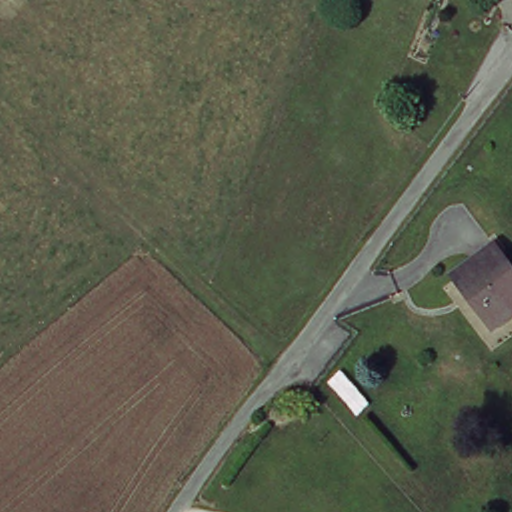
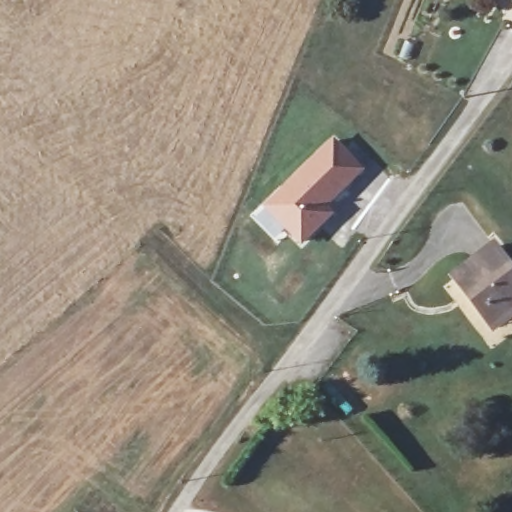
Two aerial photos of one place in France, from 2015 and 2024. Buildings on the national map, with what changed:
new [(332,134),(366,169),(330,204),(336,212),(300,247),(260,205),(332,134)]
unchanged [(485,309),(458,274),(497,244),(512,263),(512,313),(503,320),(497,325),(485,309)]

